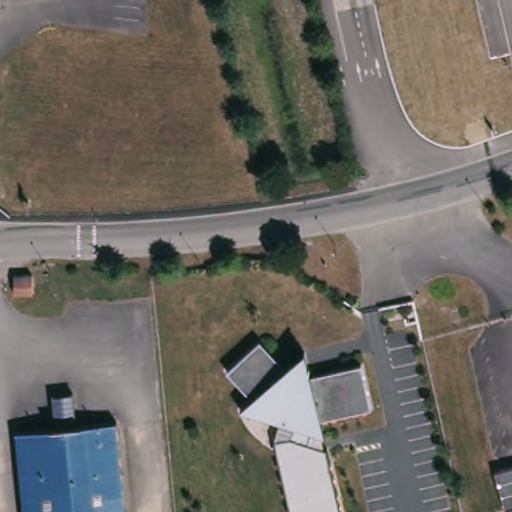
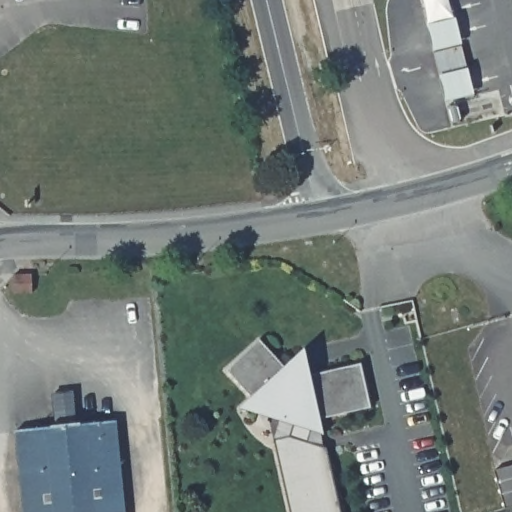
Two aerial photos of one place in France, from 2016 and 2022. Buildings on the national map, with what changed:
new [(439,75),(433,52),(421,0),(451,0),(462,45),(467,68),(473,96),(446,102),(439,75)]
unchanged [(33,274),(33,293),(14,294),(14,275),(33,274)]
unchanged [(265,339),(291,366),(309,350),(316,372),(366,362),(377,408),(324,417),(327,432),(245,408),(257,398),(231,370),(265,339)]
unchanged [(343,512),(291,512),(273,442),(276,417),(327,432),(343,512)]
unchanged [(117,420),(126,512),(24,512),(16,430),(117,420)]
unchanged [(494,470),(512,465),(512,507),(505,509),(494,470)]

